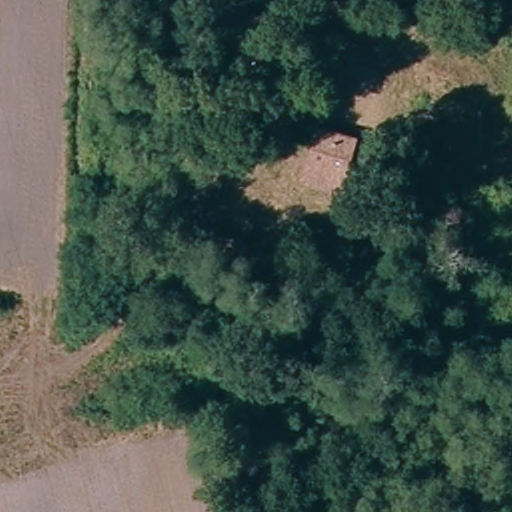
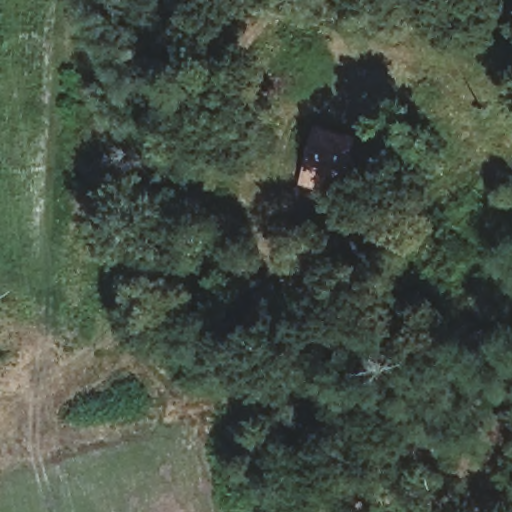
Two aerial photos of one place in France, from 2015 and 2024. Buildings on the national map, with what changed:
unchanged [(297,170),(318,126),(350,141),(329,187),(297,170)]

